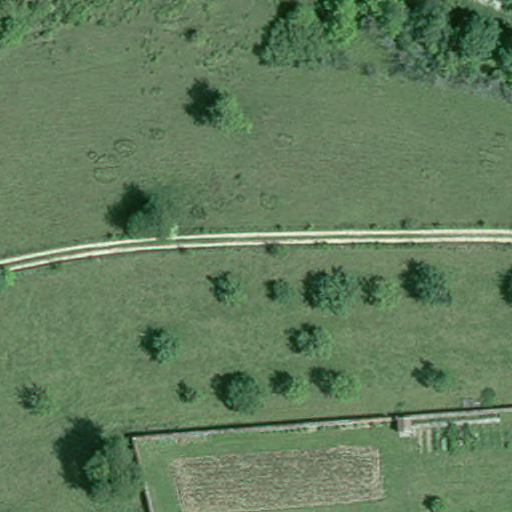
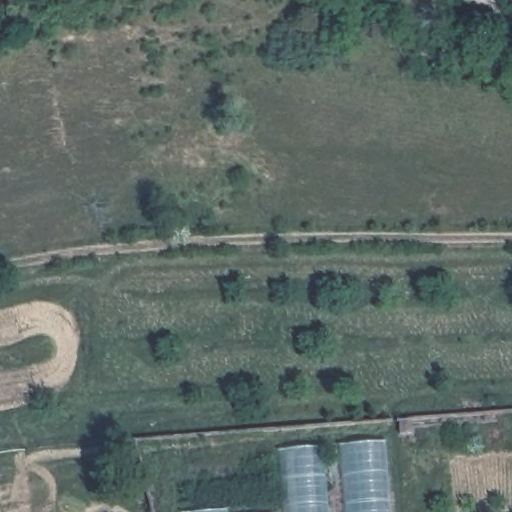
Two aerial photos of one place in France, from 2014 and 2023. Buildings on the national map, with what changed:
unchanged [(404,435),(392,436),(391,422),(404,421),(404,435)]
new [(391,512),(283,512),(278,449),(384,440),(391,512)]
new [(229,508),(229,512),(182,512),(229,508)]

